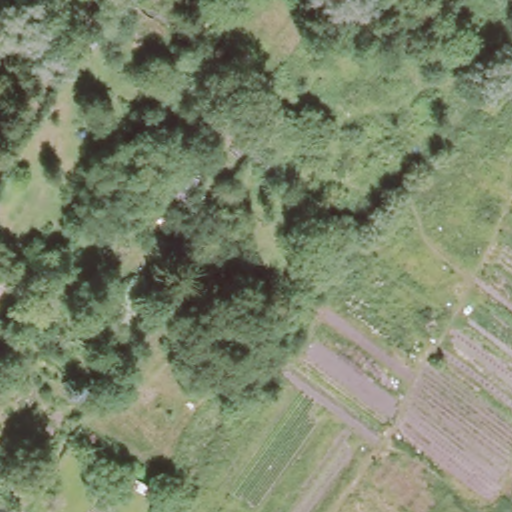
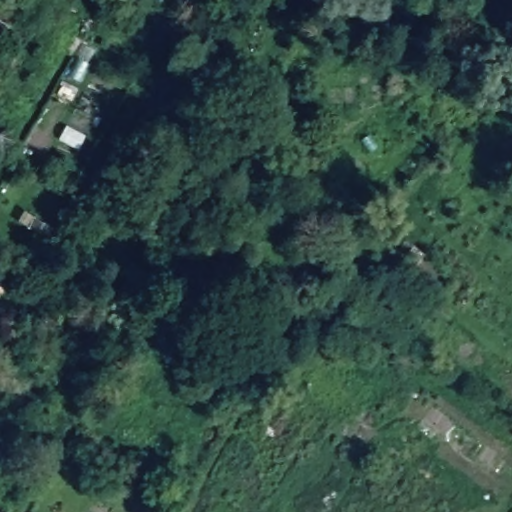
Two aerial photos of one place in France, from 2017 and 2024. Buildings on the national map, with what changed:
unchanged [(220,66),(209,57),(217,47),(228,56),(220,66)]
unchanged [(0,290),(0,280),(5,284),(0,290)]
unchanged [(33,425),(20,415),(34,400),(46,409),(33,425)]

